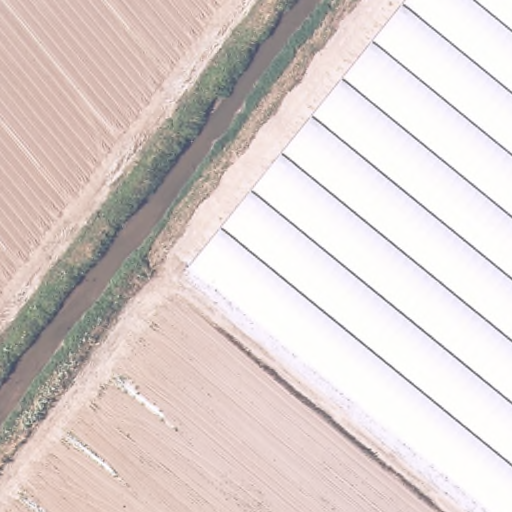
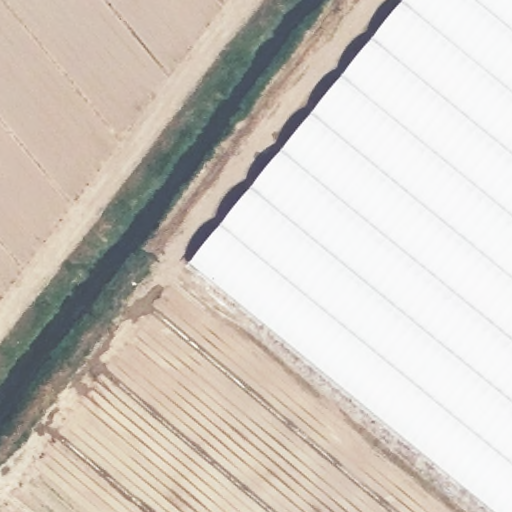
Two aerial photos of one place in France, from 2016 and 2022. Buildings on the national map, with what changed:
unchanged [(406,0),(512,0),(512,512),(493,512),(191,265),(406,0)]

